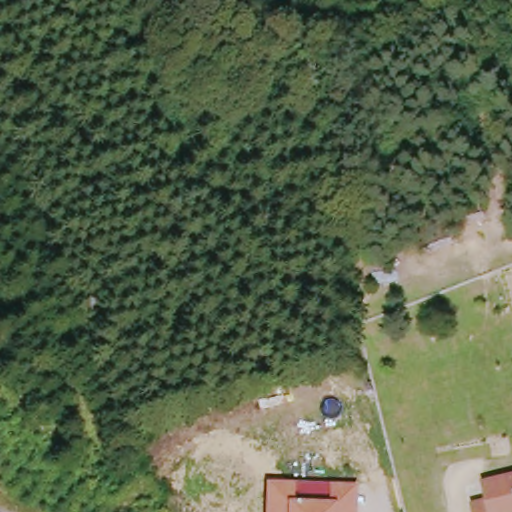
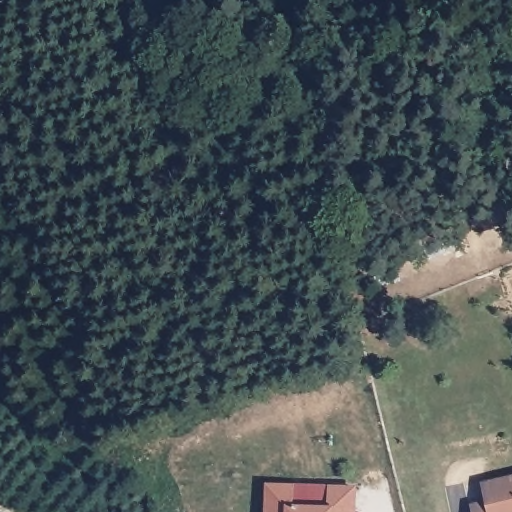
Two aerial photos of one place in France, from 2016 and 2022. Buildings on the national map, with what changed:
unchanged [(470,511),(486,507),(482,489),(512,480),(512,512),(470,512),(470,511)]
unchanged [(358,486),(357,512),(265,512),(266,483),(358,486)]

